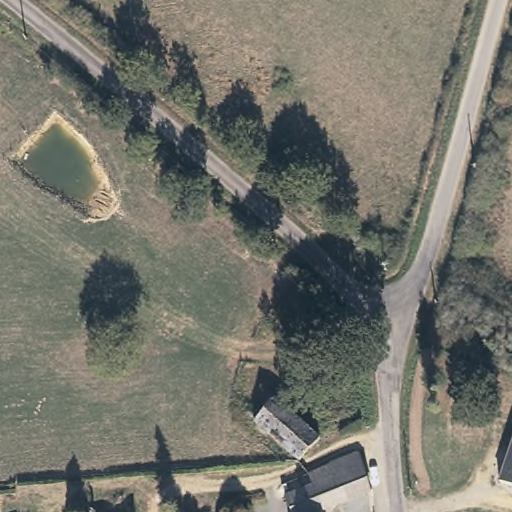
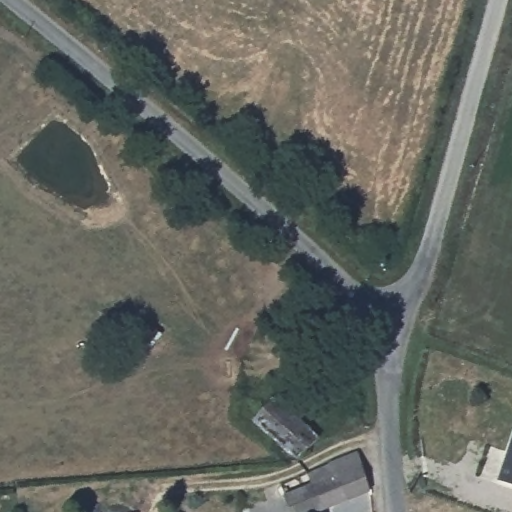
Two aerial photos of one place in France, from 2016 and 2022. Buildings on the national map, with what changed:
unchanged [(317,438),(299,462),(252,425),(271,401),(317,438)]
unchanged [(512,485),(498,480),(512,430),(512,485)]
unchanged [(357,452),(372,489),(315,512),(292,512),(287,497),(313,486),(308,475),(331,464),(357,452)]

